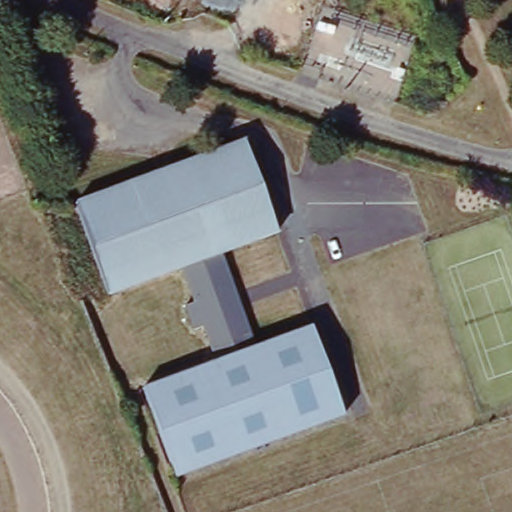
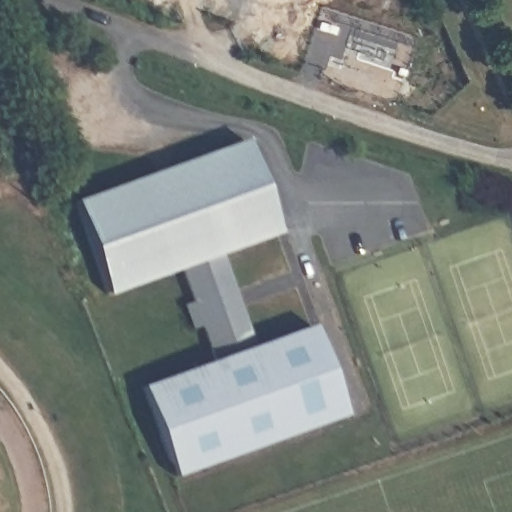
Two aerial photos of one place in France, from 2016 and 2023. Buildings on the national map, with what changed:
unchanged [(216,360),(203,325),(193,329),(185,305),(194,302),(183,268),(108,295),(77,200),(243,139),(278,234),(222,254),(255,346),(311,325),(343,415),(176,476),(145,387),(216,360)]

